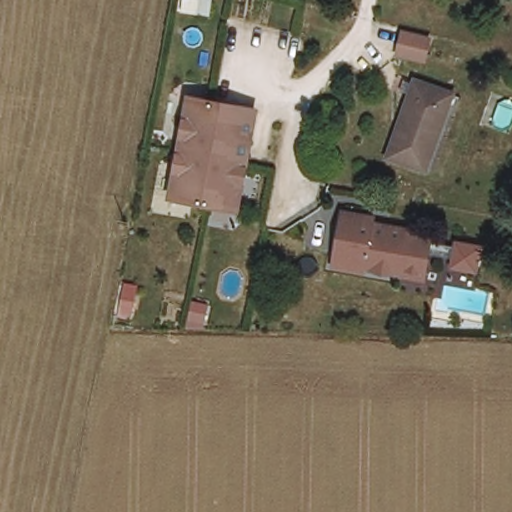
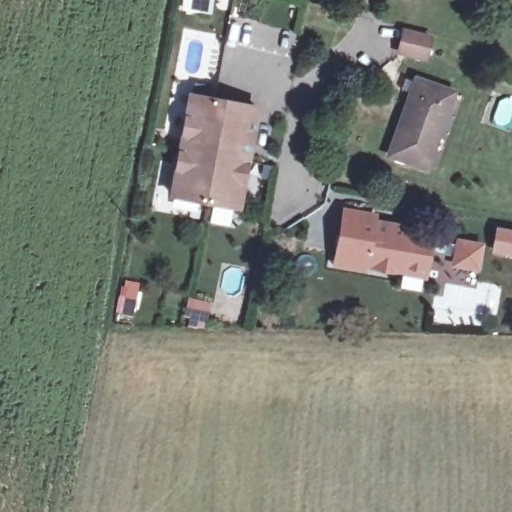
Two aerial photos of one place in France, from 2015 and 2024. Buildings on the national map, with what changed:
unchanged [(401,31),(428,38),(423,59),(396,52),(401,31)]
unchanged [(453,112),(434,171),(394,159),(415,98),(406,94),(410,83),(420,86),(420,84),(455,95),(449,110),(453,112)]
unchanged [(172,192),(192,93),(258,107),(238,206),(172,192)]
unchanged [(405,279),(369,271),(367,276),(339,270),(334,269),(337,255),(340,239),(343,240),(347,215),(377,221),(376,228),(412,236),(412,239),(435,243),(434,246),(461,251),(462,249),(484,254),(480,276),(457,271),(459,261),(432,256),(427,279),(427,283),(405,279)]
new [(512,231),(512,255),(492,251),(496,228),(512,231)]

